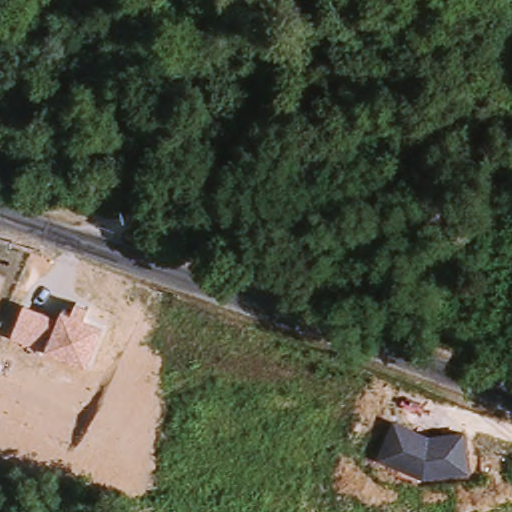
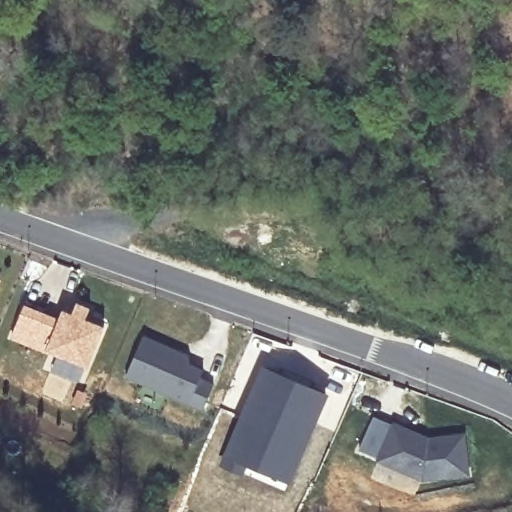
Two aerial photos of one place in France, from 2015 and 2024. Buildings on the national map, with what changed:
unchanged [(87,368),(45,352),(11,340),(25,305),(59,318),(63,310),(72,313),(76,301),(91,307),(86,319),(104,326),(87,368)]
new [(180,352),(187,355),(189,365),(202,371),(199,379),(213,385),(202,410),(126,377),(143,336),(180,352)]
new [(261,364),(329,394),(288,486),(245,468),(242,475),(217,465),(261,364)]
unchanged [(427,437),(465,433),(469,477),(422,481),(375,460),(391,422),(427,437)]

